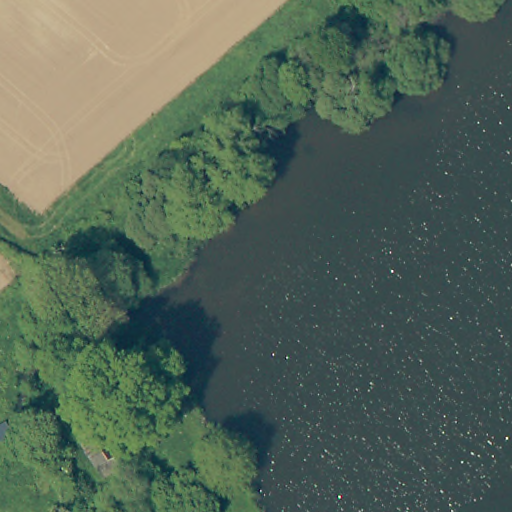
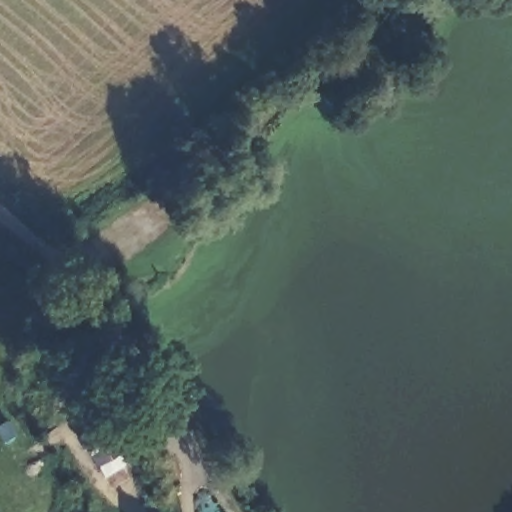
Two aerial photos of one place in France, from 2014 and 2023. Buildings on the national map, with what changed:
unchanged [(99,423),(124,463),(104,474),(80,435),(99,423)]

